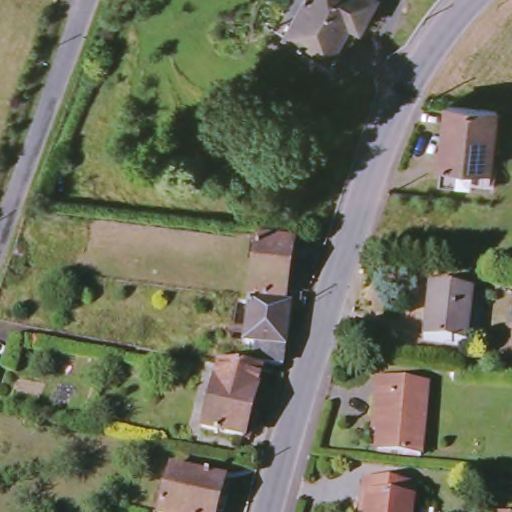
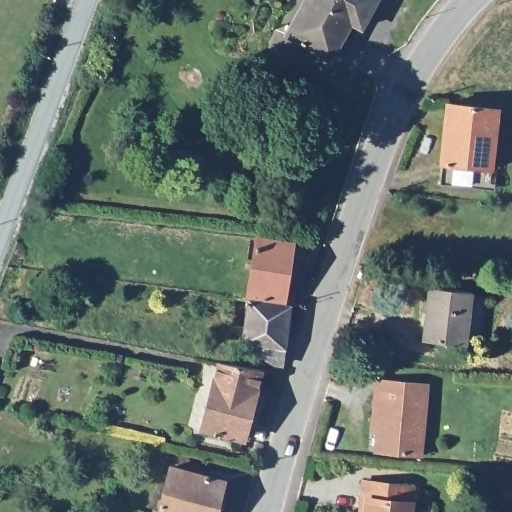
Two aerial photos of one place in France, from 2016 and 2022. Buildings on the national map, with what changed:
unchanged [(288,31),(305,0),(377,0),(364,24),(361,22),(336,69),(294,47),(299,37),(288,31)]
unchanged [(506,108),(497,186),(447,180),(457,102),(506,108)]
unchanged [(294,253),(286,309),(253,303),(259,247),(294,253)]
unchanged [(478,268),(476,283),(462,282),(464,267),(478,268)]
unchanged [(462,291),(462,294),(475,295),(471,343),(459,341),(458,345),(416,340),(422,286),(462,291)]
unchanged [(253,369),(256,352),(246,350),(252,308),(292,316),(288,356),(286,374),(253,369)]
unchanged [(264,376),(248,447),(206,436),(223,368),(264,376)]
unchanged [(379,421),(384,384),(434,390),(427,462),(381,457),(384,437),(378,436),(379,421)]
unchanged [(173,469),(217,480),(218,475),(228,478),(223,494),(229,495),(225,512),(163,512),(173,469)]
unchanged [(363,503),(364,487),(418,492),(416,512),(362,512),(363,503)]

